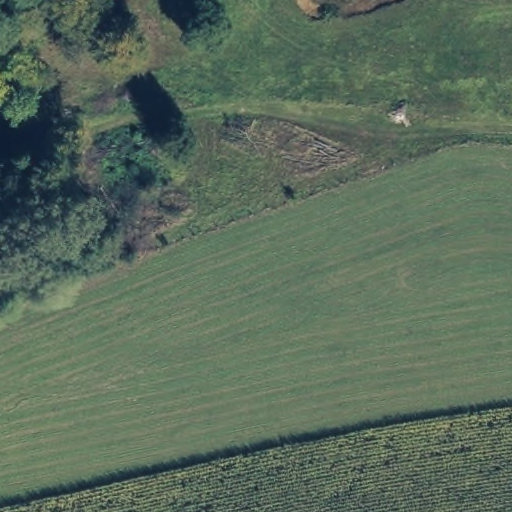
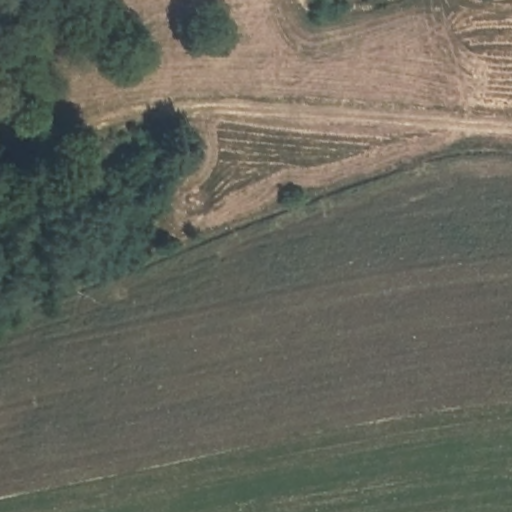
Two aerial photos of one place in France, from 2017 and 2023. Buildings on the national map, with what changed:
unchanged [(43,53),(57,69),(29,97),(12,78),(43,53)]

